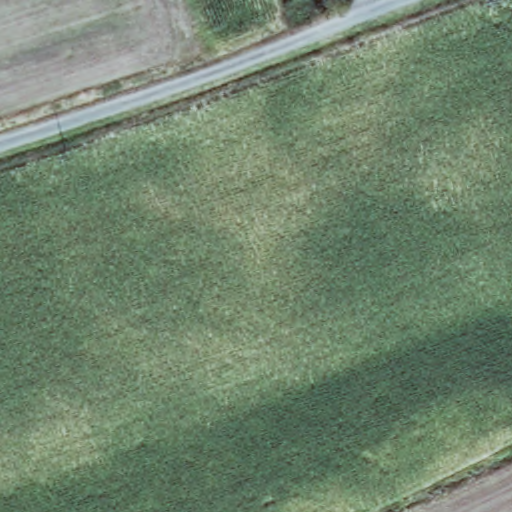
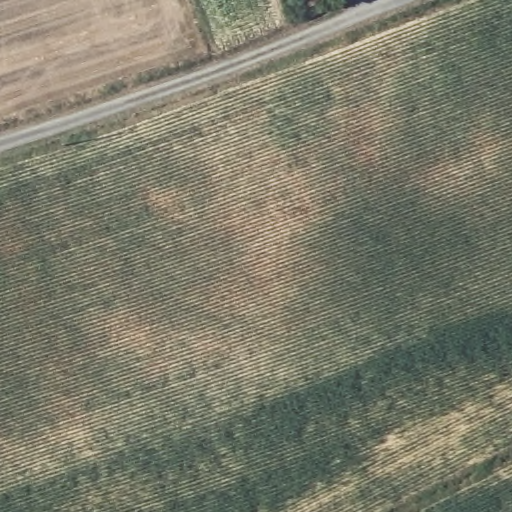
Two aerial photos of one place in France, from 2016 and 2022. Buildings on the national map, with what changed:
unchanged [(315,9),(311,0),(340,0),(315,9)]

